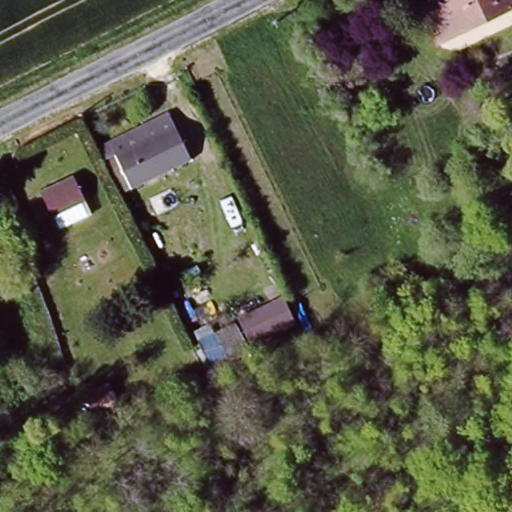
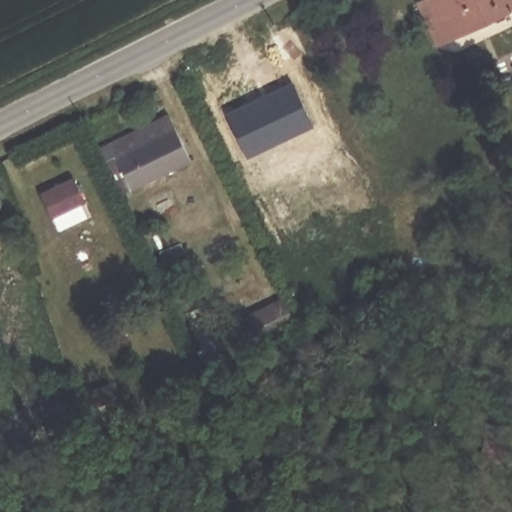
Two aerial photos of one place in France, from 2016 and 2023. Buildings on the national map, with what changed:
unchanged [(512,9),(443,40),(425,2),(429,0),(512,0),(512,9)]
new [(292,80),(312,124),(245,155),(225,112),(292,80)]
unchanged [(190,158),(118,193),(96,146),(169,110),(190,158)]
unchanged [(72,179),(82,201),(51,216),(40,194),(72,179)]
unchanged [(3,245),(0,246),(0,236),(3,245)]
unchanged [(302,326),(221,359),(208,327),(285,292),(302,326)]

